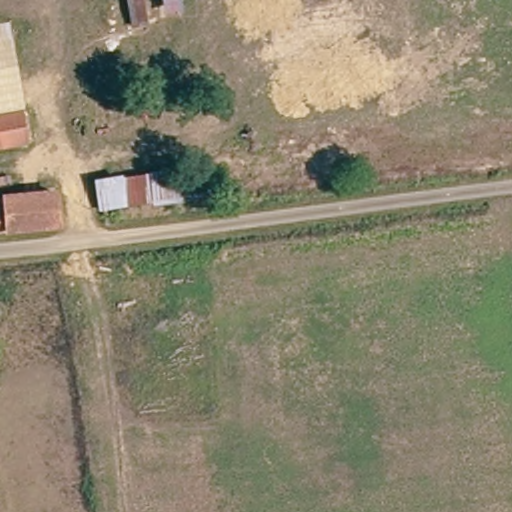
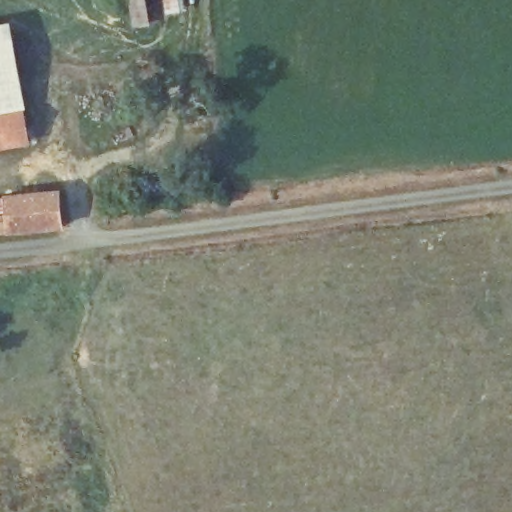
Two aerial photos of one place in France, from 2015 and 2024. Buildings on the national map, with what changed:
unchanged [(139,17),(120,20),(117,0),(137,0),(139,17)]
unchanged [(161,14),(159,0),(172,0),(174,12),(161,14)]
unchanged [(4,23),(17,115),(0,118),(0,24),(4,23)]
unchanged [(17,115),(21,144),(0,147),(0,118),(17,115)]
demolished [(145,206),(142,200),(124,205),(97,208),(93,176),(121,172),(121,176),(187,166),(188,199),(145,206)]
unchanged [(56,224),(0,231),(0,197),(49,189),(56,224)]

